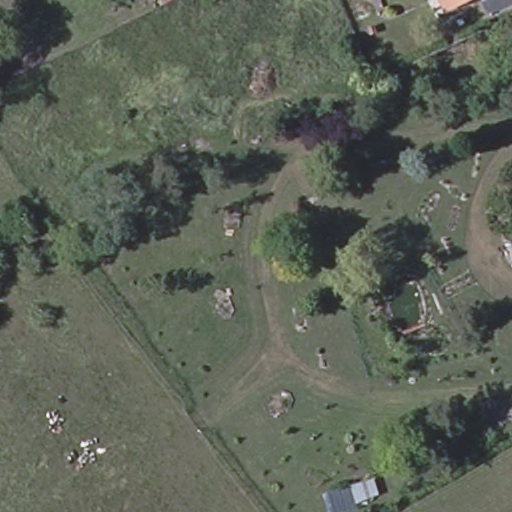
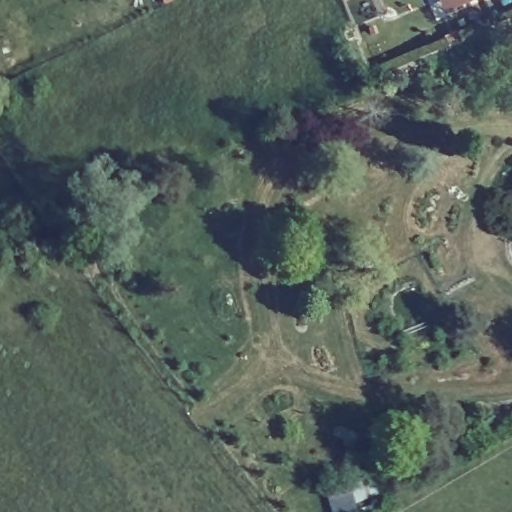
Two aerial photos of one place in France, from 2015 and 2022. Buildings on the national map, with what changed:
unchanged [(441,0),(460,0),(445,7),(441,0)]
unchanged [(372,79),(365,82),(362,75),(370,72),(372,79)]

